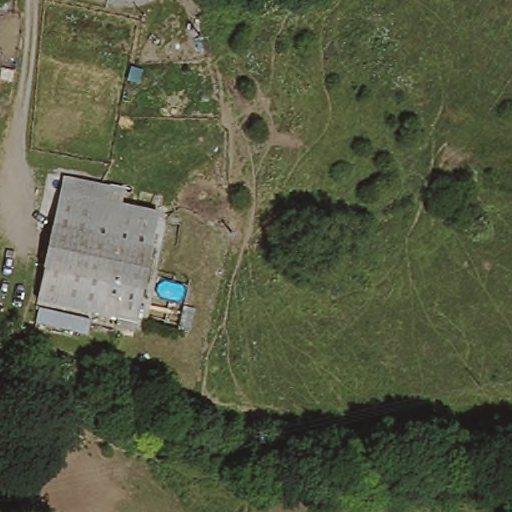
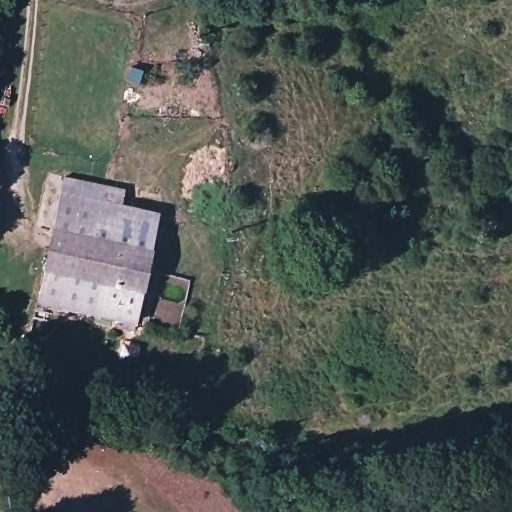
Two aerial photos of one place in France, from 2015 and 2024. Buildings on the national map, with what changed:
unchanged [(131,323),(37,297),(68,177),(104,186),(100,201),(161,217),(131,323)]

